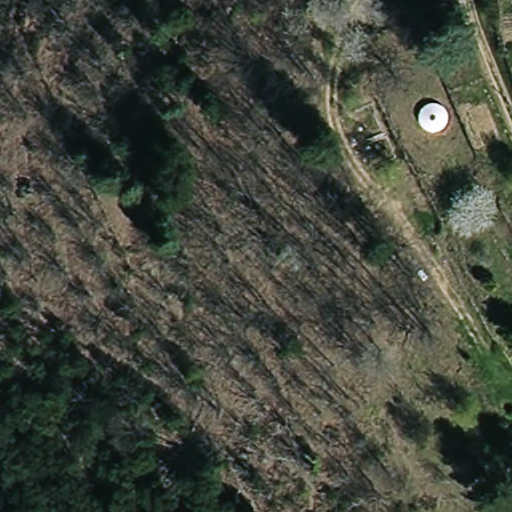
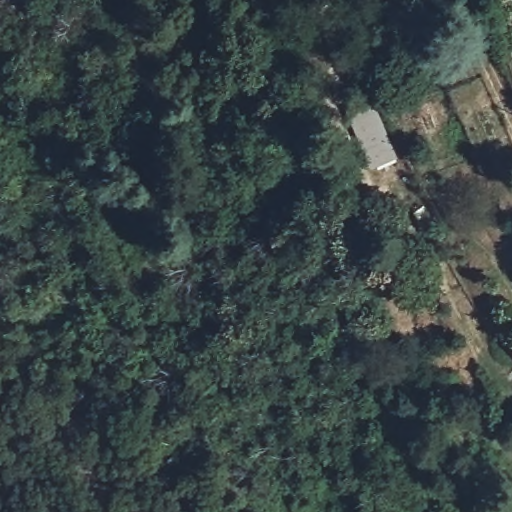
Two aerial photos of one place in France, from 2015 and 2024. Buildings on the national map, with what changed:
new [(397,157),(370,169),(346,114),(373,102),(397,157)]

